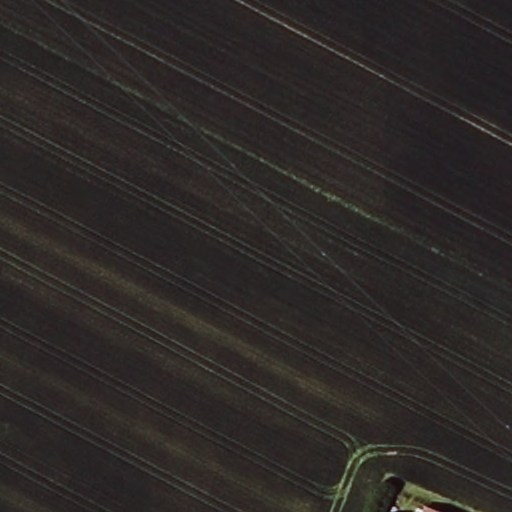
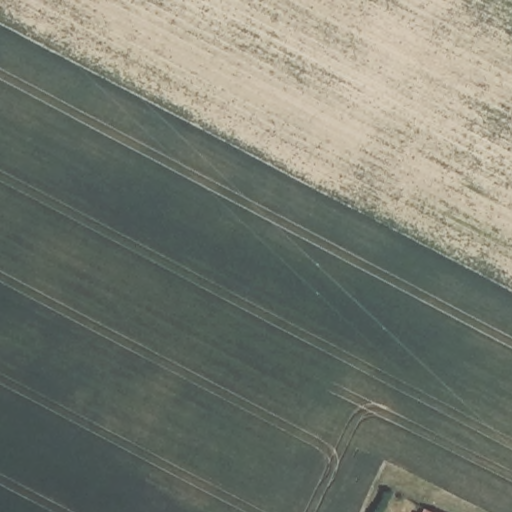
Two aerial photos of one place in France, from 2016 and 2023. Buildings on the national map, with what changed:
unchanged [(424,508),(433,512),(421,512),(424,508)]

